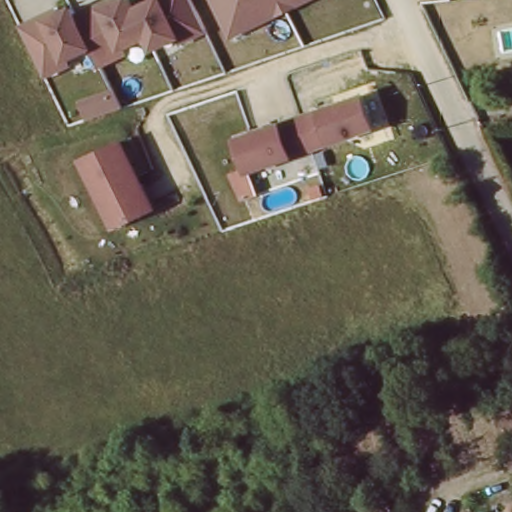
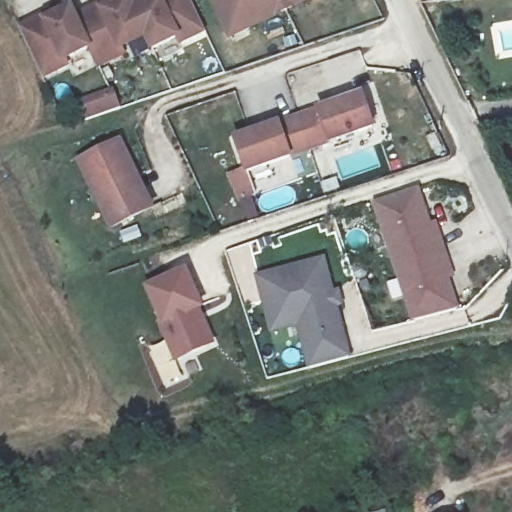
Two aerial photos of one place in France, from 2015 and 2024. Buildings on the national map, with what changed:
unchanged [(205,32),(182,45),(178,39),(155,51),(147,38),(120,50),(125,58),(100,69),(93,48),(70,59),(70,66),(46,78),(22,26),(40,14),(42,19),(71,6),(77,14),(95,4),(98,11),(120,0),(132,0),(136,6),(154,0),(190,0),(205,32)]
unchanged [(228,36),(211,0),(309,0),(228,36)]
unchanged [(366,95),(378,125),(315,150),(303,119),(366,95)]
unchanged [(315,150),(252,174),(240,143),(303,119),(315,150)]
unchanged [(150,212),(115,228),(85,161),(125,142),(142,178),(155,209),(150,212)]
new [(445,228),(450,244),(402,260),(381,197),(422,183),(435,220),(441,218),(445,228)]
new [(455,260),(458,270),(453,272),(463,303),(422,314),(402,260),(450,244),(455,260)]
new [(340,289),(345,287),(348,298),(342,300),(357,352),(318,362),(306,317),(280,324),(272,298),(265,272),(330,255),(340,289)]
new [(142,285),(187,268),(216,344),(173,362),(142,285)]
unchanged [(388,493),(392,508),(394,512),(364,512),(360,499),(388,493)]

